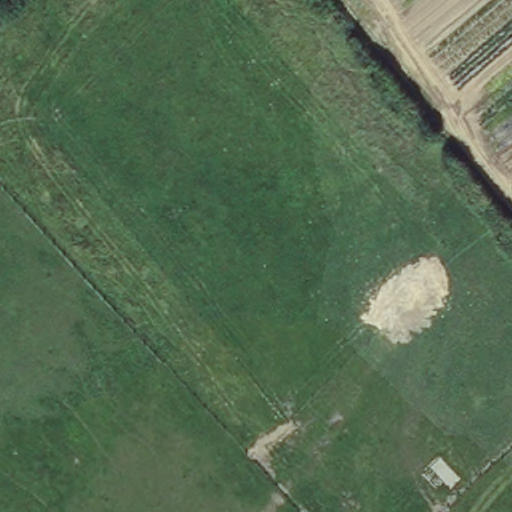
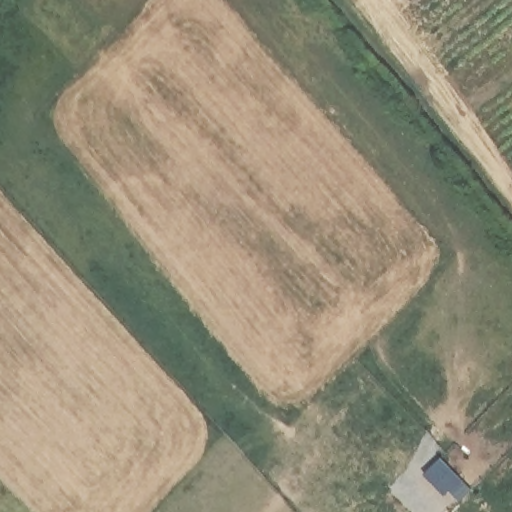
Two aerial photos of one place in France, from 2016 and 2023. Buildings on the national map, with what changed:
new [(473,488),(462,500),(452,488),(445,496),(424,474),(441,455),(473,488)]

